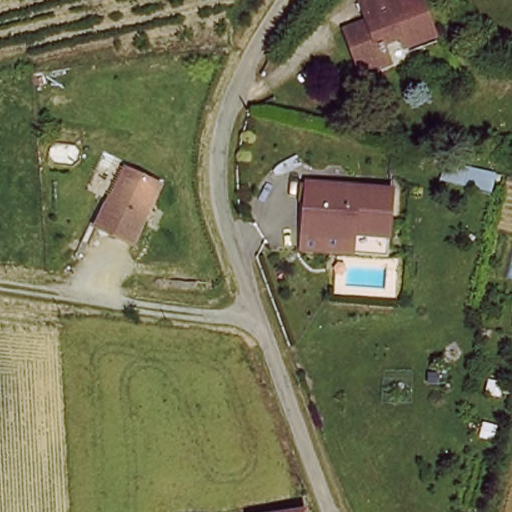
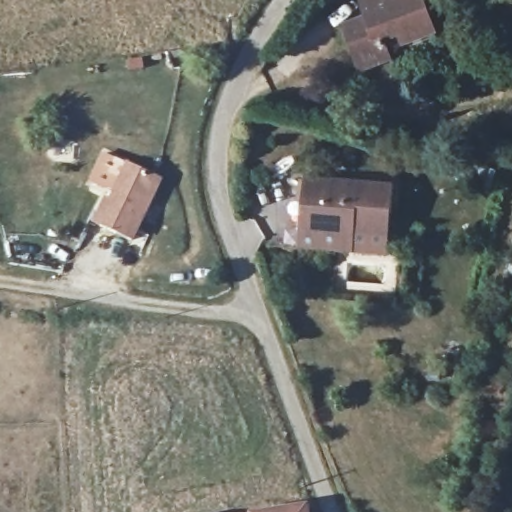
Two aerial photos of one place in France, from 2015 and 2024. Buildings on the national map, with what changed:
unchanged [(355,50),(342,14),(364,5),(362,0),(423,0),(427,12),(432,27),(420,32),(418,27),(402,32),(398,22),(380,29),(384,40),(387,49),(358,60),(355,50)]
unchanged [(135,244),(97,226),(124,167),(161,184),(135,244)]
unchanged [(308,174),(394,181),(390,227),(345,222),(339,230),(303,227),(308,174)]
unchanged [(339,230),(345,222),(390,227),(388,247),(302,240),(303,227),(339,230)]
unchanged [(243,511),(268,507),(309,502),(310,512),(243,512),(243,511)]

